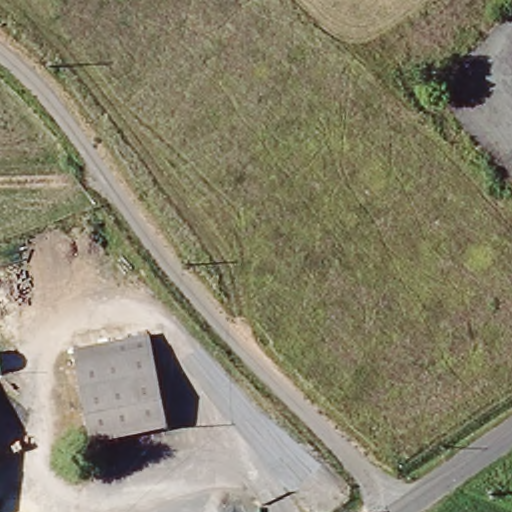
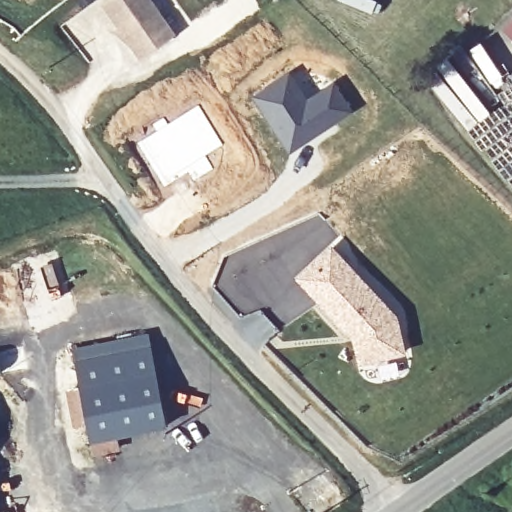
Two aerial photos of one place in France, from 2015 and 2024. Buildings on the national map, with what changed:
new [(107,0),(154,0),(177,34),(142,59),(102,4),(107,0)]
new [(290,71),(308,96),(335,81),(355,110),(289,154),(251,98),(290,71)]
new [(152,131),(149,126),(163,116),(167,122),(197,104),(223,144),(206,157),(212,166),(205,170),(201,164),(164,187),(135,143),(152,131)]
new [(359,339),(353,332),(302,278),(334,248),(399,317),(407,351),(370,360),(364,362),(359,339)]
unchanged [(98,455),(96,443),(81,365),(77,351),(117,343),(152,336),(170,427),(120,438),(122,450),(98,455)]

